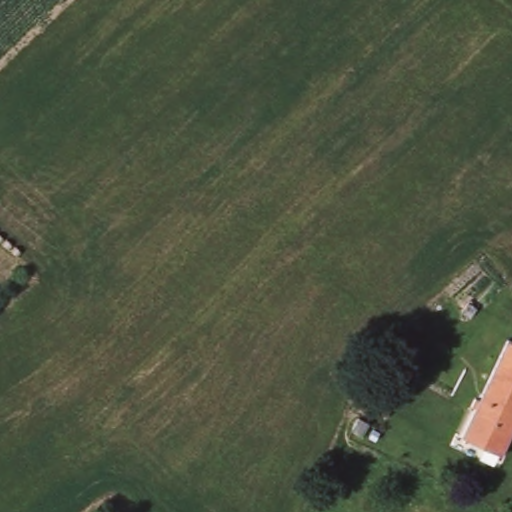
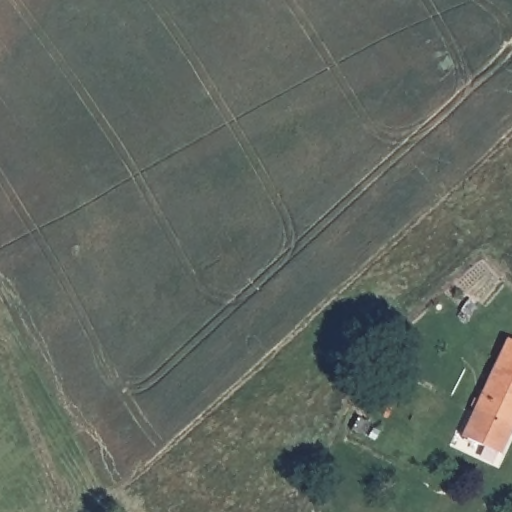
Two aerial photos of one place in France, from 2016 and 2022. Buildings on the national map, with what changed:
unchanged [(512,340),(512,430),(502,450),(465,433),(507,338),(512,340)]

